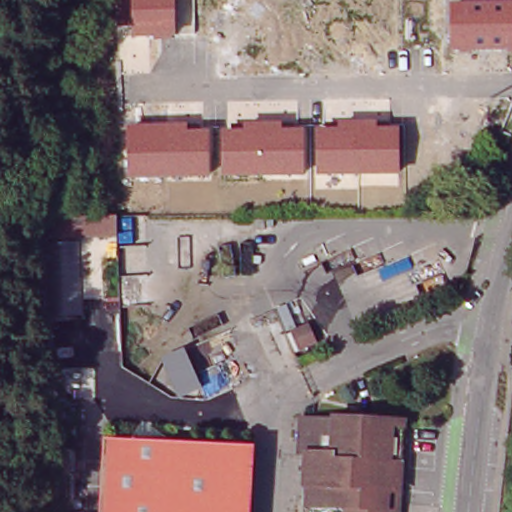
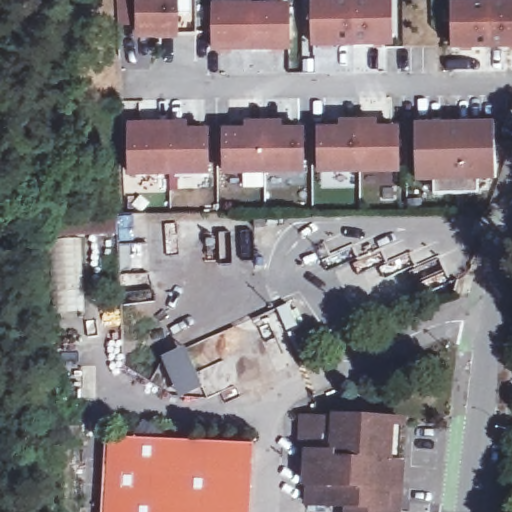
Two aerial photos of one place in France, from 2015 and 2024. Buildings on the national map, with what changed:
unchanged [(133,24),(117,25),(117,0),(175,0),(175,37),(133,37),(133,24)]
new [(393,0),(393,47),(312,49),(312,0),(393,0)]
unchanged [(450,51),(451,3),(512,2),(512,51),(450,51)]
new [(212,3),(291,4),(292,52),(212,52),(212,3)]
unchanged [(400,176),(317,176),(316,130),(338,130),(338,122),(377,122),(377,130),(400,129),(400,176)]
new [(417,184),(415,124),(494,122),(497,181),(479,182),(479,193),(434,195),(435,182),(417,184)]
unchanged [(304,177),(222,177),(223,131),(244,131),(244,123),(282,123),(282,130),(305,130),(304,177)]
unchanged [(128,177),(128,125),(187,124),(187,132),(209,131),(208,177),(128,177)]
unchanged [(92,236),(98,311),(50,312),(46,212),(115,209),(116,236),(92,236)]
unchanged [(310,325),(318,342),(306,347),(298,329),(310,325)]
unchanged [(179,398),(160,357),(180,346),(202,388),(179,398)]
unchanged [(355,420),(355,423),(367,424),(367,420),(400,423),(397,492),(387,492),(386,508),(395,510),(395,512),(342,512),(342,507),(305,506),(306,486),(303,486),(305,453),(298,453),(300,419),(332,421),(333,418),(355,420)]
unchanged [(127,431),(252,441),(247,512),(104,512),(110,430),(127,431)]

